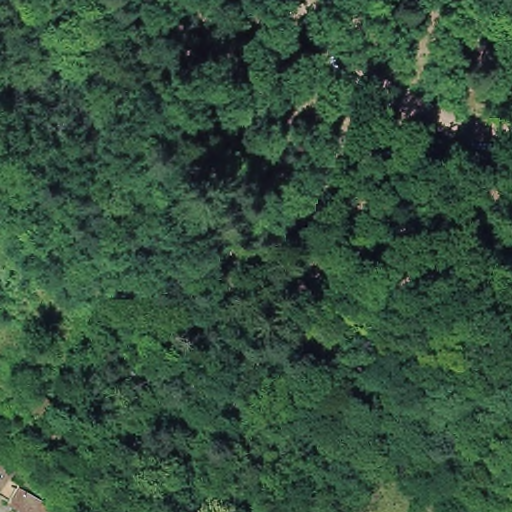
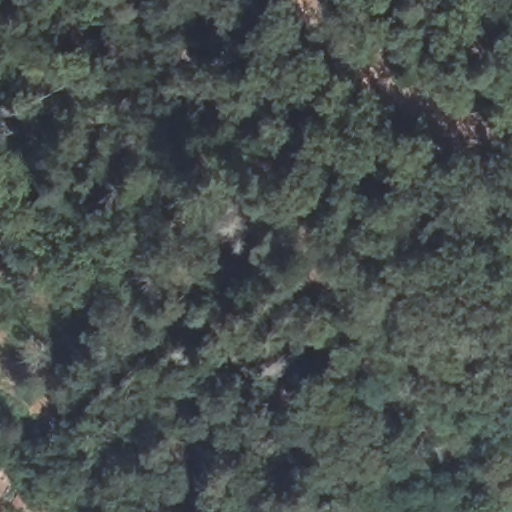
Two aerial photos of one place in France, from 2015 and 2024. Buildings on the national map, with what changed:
unchanged [(37,391),(62,410),(54,420),(29,402),(37,391)]
unchanged [(14,468),(7,478),(18,485),(10,497),(0,490),(0,459),(14,468)]
unchanged [(15,499),(24,484),(63,508),(61,512),(40,512),(15,499)]

